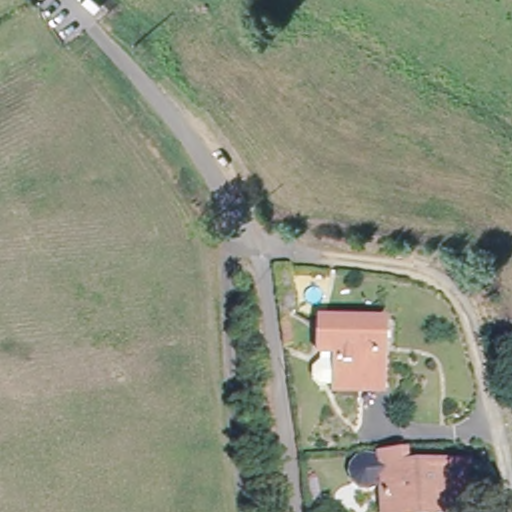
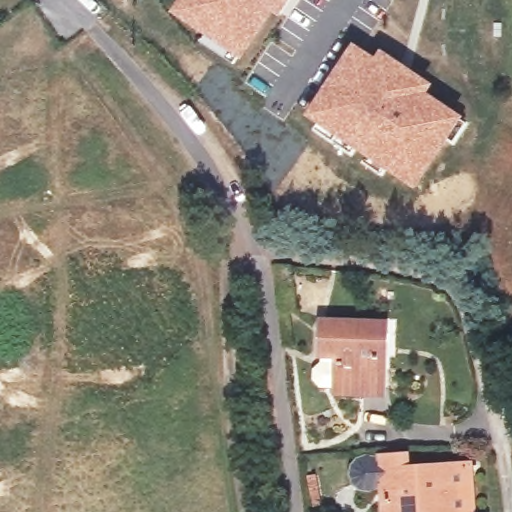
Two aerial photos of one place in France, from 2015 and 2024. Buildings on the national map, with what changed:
new [(280,18),(272,13),(242,61),(168,12),(177,0),(292,0),(280,18)]
new [(375,57),(381,47),(433,83),(427,93),(463,116),(415,188),(304,115),(353,42),(375,57)]
unchanged [(296,311),(282,312),(276,263),(291,265),(296,311)]
unchanged [(345,388),(345,356),(328,355),(328,323),(387,325),(387,389),(345,388)]
unchanged [(450,470),(454,512),(387,512),(383,473),(450,470)]

